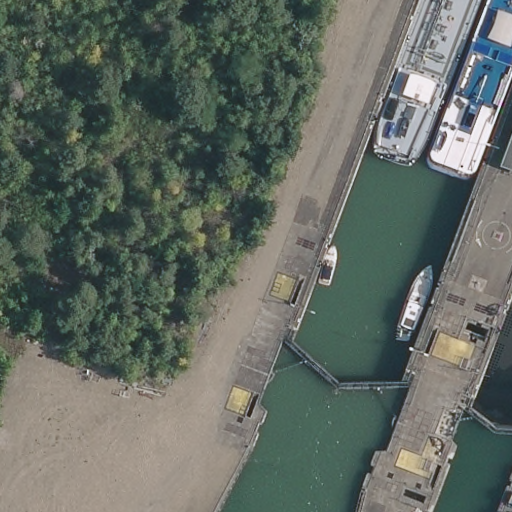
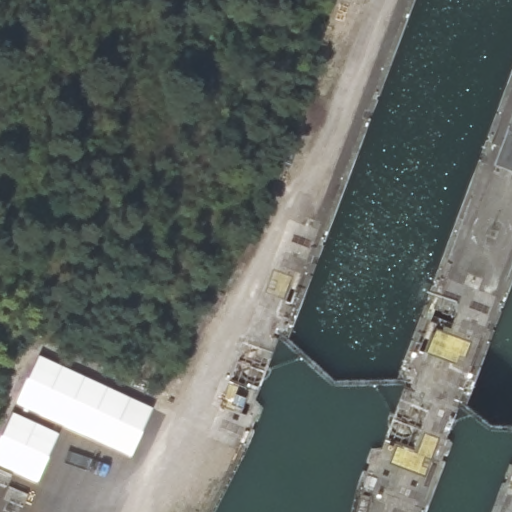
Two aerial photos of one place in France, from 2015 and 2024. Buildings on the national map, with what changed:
new [(38,355),(153,409),(132,459),(67,429),(15,404),(38,355)]
demolished [(461,387),(452,407),(443,404),(450,383),(461,387)]
new [(57,434),(37,484),(0,468),(0,438),(12,413),(57,434)]

